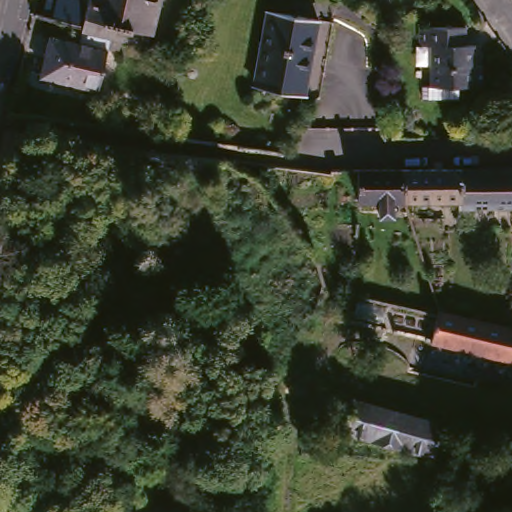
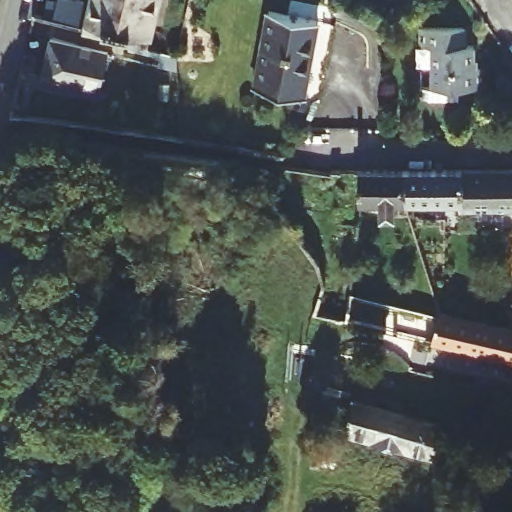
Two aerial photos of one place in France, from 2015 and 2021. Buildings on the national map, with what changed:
unchanged [(144,36),(141,49),(77,34),(78,32),(79,20),(78,20),(82,0),(154,0),(145,36),(144,36)]
unchanged [(49,10),(51,4),(77,10),(73,30),(36,22),(39,8),(44,9),(49,10)]
unchanged [(254,12),(318,25),(305,98),(239,86),(247,49),(254,12)]
unchanged [(479,89),(429,89),(428,50),(418,50),(418,32),(462,32),(462,50),(469,50),(469,67),(478,67),(479,78),(479,89)]
unchanged [(73,85),(34,77),(43,42),(101,55),(91,94),(71,90),(72,87),(73,85)]
unchanged [(67,162),(71,142),(128,150),(125,170),(67,162)]
unchanged [(141,185),(146,152),(219,162),(214,195),(141,185)]
unchanged [(453,212),(453,205),(455,205),(454,171),(512,170),(512,211),(494,211),(453,212)]
unchanged [(396,172),(454,171),(455,205),(453,205),(407,206),(396,206),(396,172)]
unchanged [(387,206),(387,222),(379,222),(372,222),(372,217),(352,217),(350,172),(396,172),(396,206),(387,206)]
unchanged [(344,321),(351,297),(394,307),(437,317),(435,322),(429,342),(344,321)]
unchanged [(437,317),(437,314),(440,315),(512,332),(512,362),(429,342),(435,322),(437,317)]
unchanged [(432,437),(433,438),(424,467),(399,460),(399,462),(365,452),(365,450),(351,445),(337,441),(346,412),(347,413),(351,398),(373,405),(414,417),(436,423),(432,437)]

